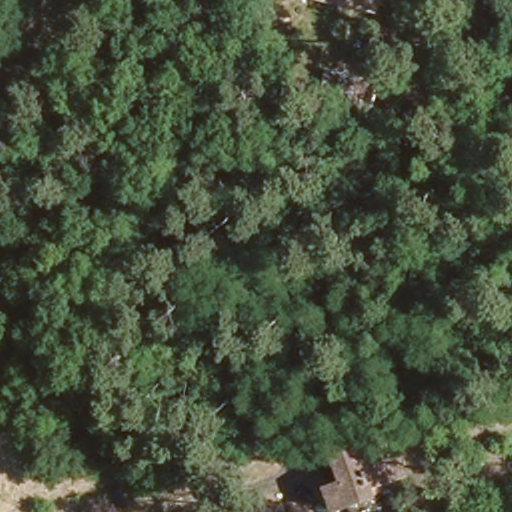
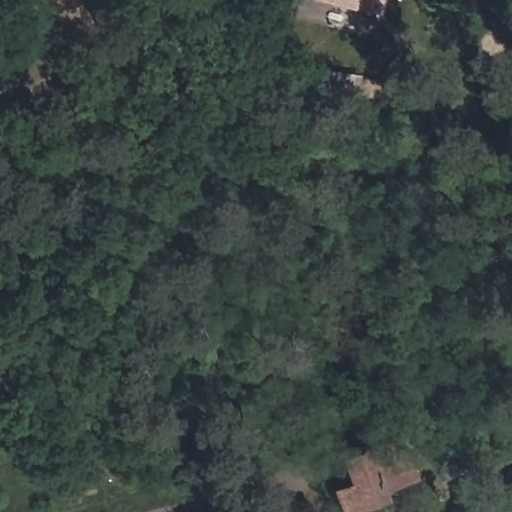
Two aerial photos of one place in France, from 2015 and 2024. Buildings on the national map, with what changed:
unchanged [(380,16),(348,9),(349,5),(329,0),(384,0),(380,16)]
unchanged [(377,507),(360,512),(351,512),(346,496),(327,502),(320,478),(336,473),(328,450),(378,434),(382,444),(399,439),(404,454),(389,459),(391,469),(395,482),(371,490),(377,507)]

